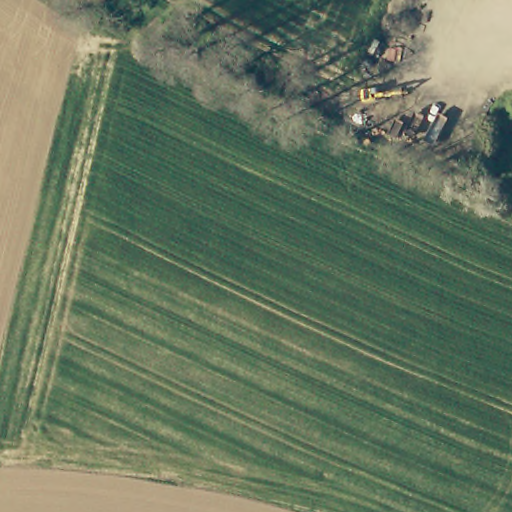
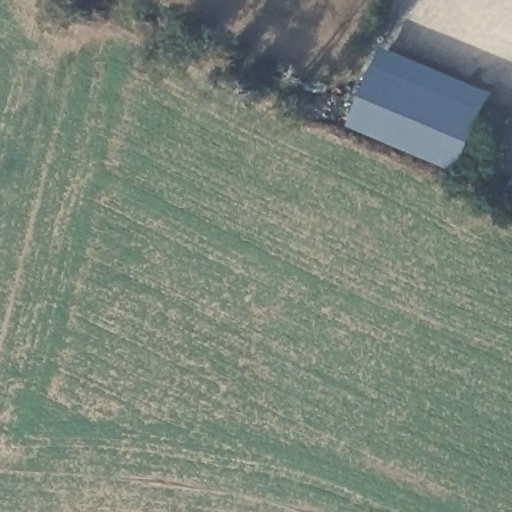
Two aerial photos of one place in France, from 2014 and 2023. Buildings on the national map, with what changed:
new [(353,127),(379,53),(485,98),(461,172),(353,127)]

